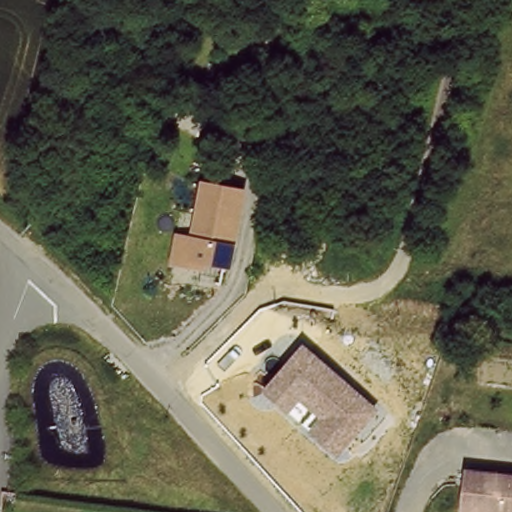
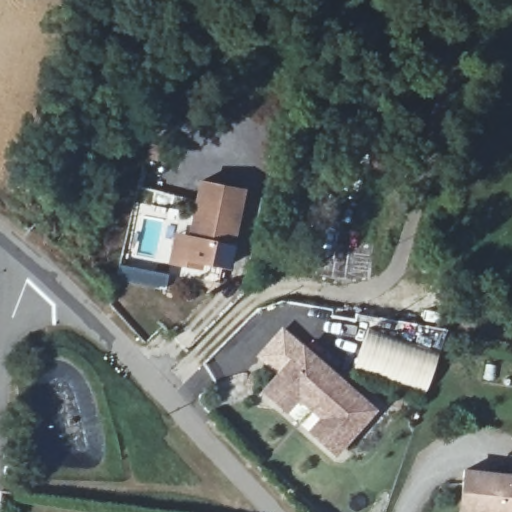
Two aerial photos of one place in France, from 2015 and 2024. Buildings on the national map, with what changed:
unchanged [(205,266),(203,271),(169,264),(175,232),(189,235),(200,180),(247,189),(236,246),(230,271),(205,266)]
new [(442,354),(425,401),(354,375),(371,326),(442,354)]
unchanged [(278,416),(256,395),(275,372),(297,347),(369,409),(331,453),(306,431),(322,413),(297,391),(278,416)]
unchanged [(465,471),(512,475),(512,512),(460,512),(465,471)]

